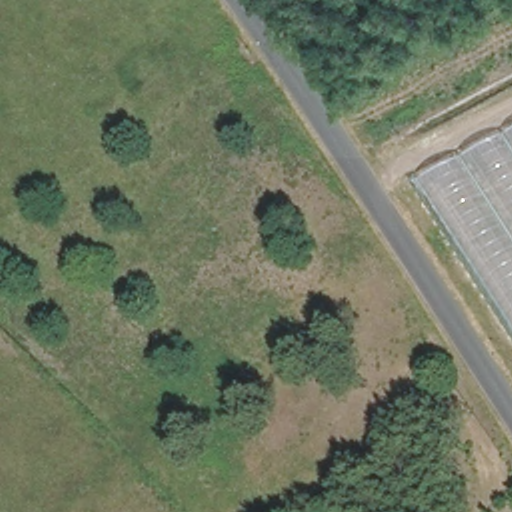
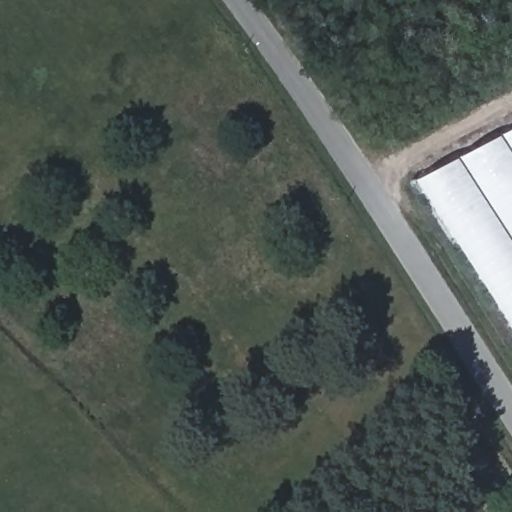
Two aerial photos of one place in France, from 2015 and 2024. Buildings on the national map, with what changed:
unchanged [(420,178),(512,130),(512,321),(420,178)]

